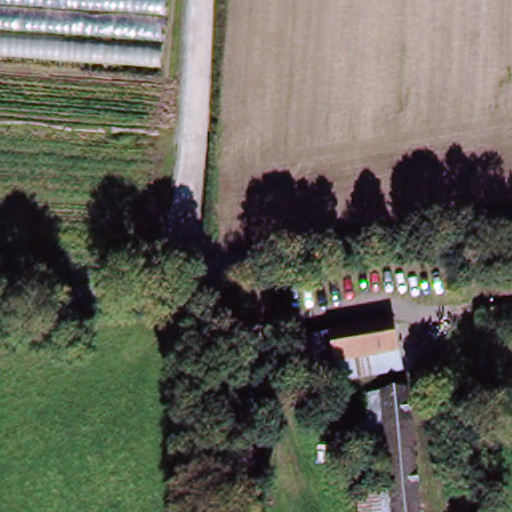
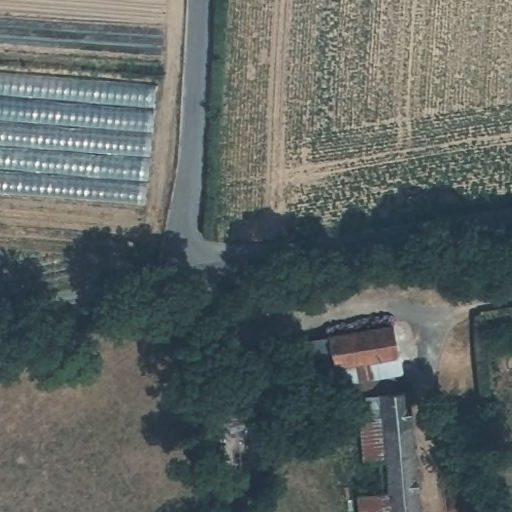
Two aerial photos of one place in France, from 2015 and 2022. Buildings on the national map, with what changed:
demolished [(0,55),(0,0),(171,0),(165,68),(0,55)]
new [(145,205),(0,195),(0,70),(155,83),(145,205)]
unchanged [(335,382),(326,335),(391,323),(400,370),(335,382)]
unchanged [(300,388),(293,341),(326,335),(335,382),(300,388)]
unchanged [(218,437),(210,386),(252,378),(255,426),(218,437)]
unchanged [(390,491),(386,459),(366,461),(362,422),(370,421),(368,394),(411,390),(424,512),(392,512),(390,491)]
unchanged [(359,493),(390,491),(392,512),(361,512),(359,493)]

